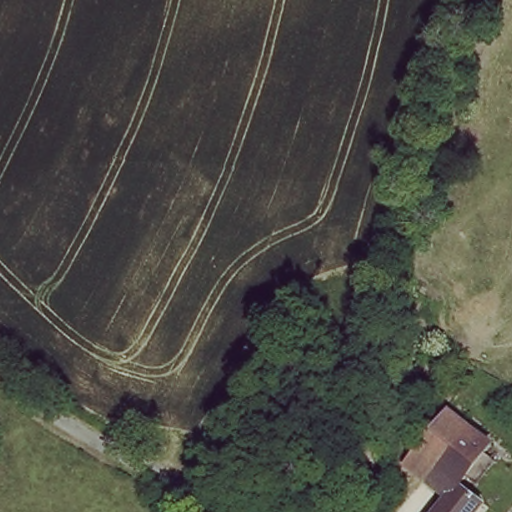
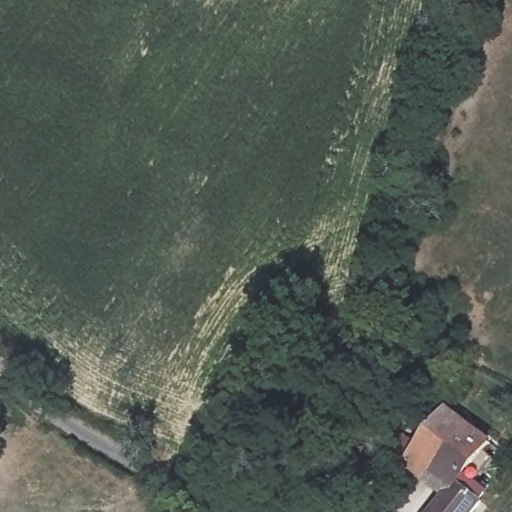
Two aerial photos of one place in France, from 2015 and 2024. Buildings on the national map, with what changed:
unchanged [(452,479),(412,451),(446,401),(489,433),(457,473),(452,479)]
unchanged [(457,473),(484,495),(469,512),(426,512),(452,479),(457,473)]

